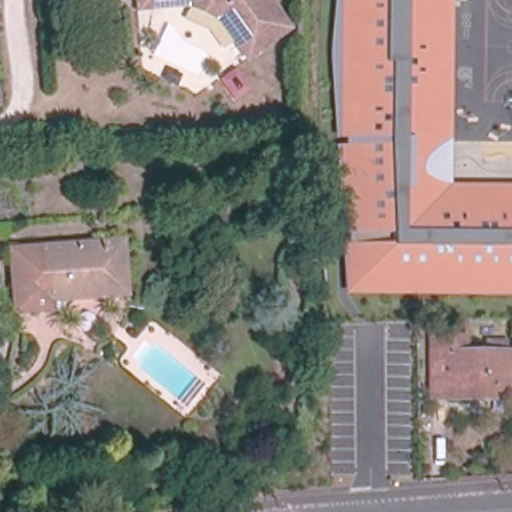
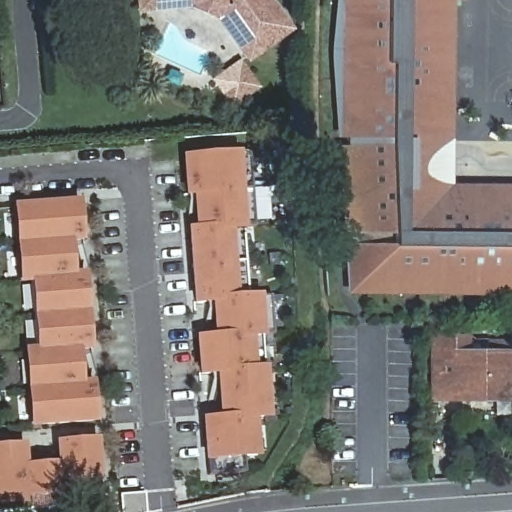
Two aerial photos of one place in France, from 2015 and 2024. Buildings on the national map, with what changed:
unchanged [(288,28),(247,58),(234,42),(243,36),(224,10),(202,0),(268,0),(288,28)]
unchanged [(344,295),(339,139),(328,56),(334,0),(452,0),(450,184),(512,185),(512,296),(344,295)]
unchanged [(285,169),(269,169),(269,142),(285,142),(285,169)]
new [(242,459),(244,471),(208,473),(207,461),(203,418),(218,416),(215,375),(199,376),(196,336),(212,334),(210,305),(194,305),(188,227),(194,227),(192,197),(185,197),(183,156),(241,152),(249,151),(255,226),(249,227),(241,227),(246,295),(261,293),(269,292),(273,335),(264,336),(258,337),(260,367),(267,366),(272,418),(255,420),(260,457),(242,459)]
new [(74,272),(84,271),(92,351),(81,352),(84,382),(94,381),(98,422),(30,427),(24,350),(35,348),(30,283),(19,283),(14,205),(79,199),(84,241),(73,242),(74,272)]
demolished [(124,292),(48,298),(49,307),(16,309),(11,252),(119,244),(124,292)]
demolished [(227,318),(209,312),(221,279),(239,286),(227,318)]
unchanged [(431,404),(431,342),(454,342),(454,357),(465,357),(486,357),(486,347),(507,347),(507,357),(509,357),(509,404),(431,404)]
new [(28,463),(58,461),(55,441),(98,437),(102,480),(104,491),(64,496),(66,507),(9,512),(0,512),(0,445),(26,443),(28,463)]
new [(143,512),(118,512),(117,495),(142,492),(143,512)]

